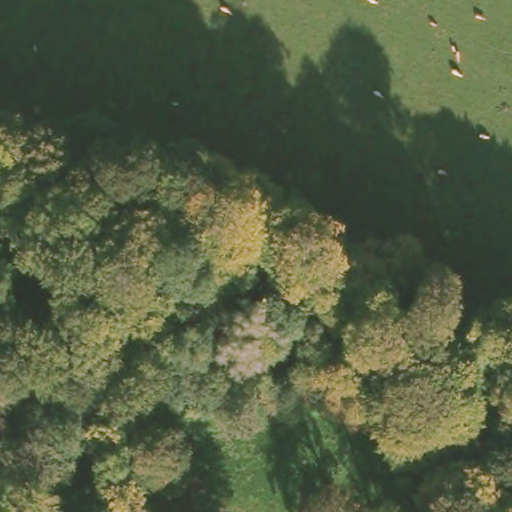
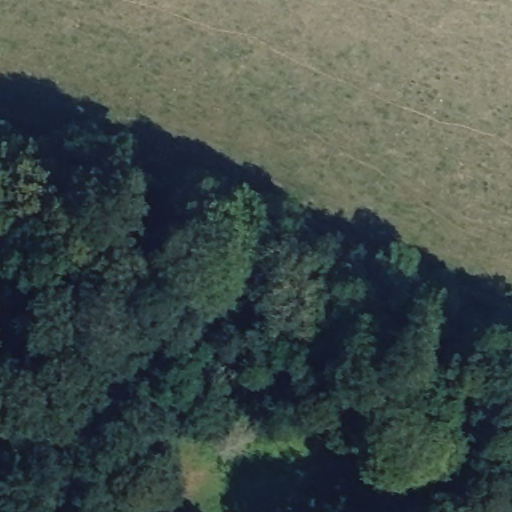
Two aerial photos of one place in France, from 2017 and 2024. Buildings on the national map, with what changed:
[]

